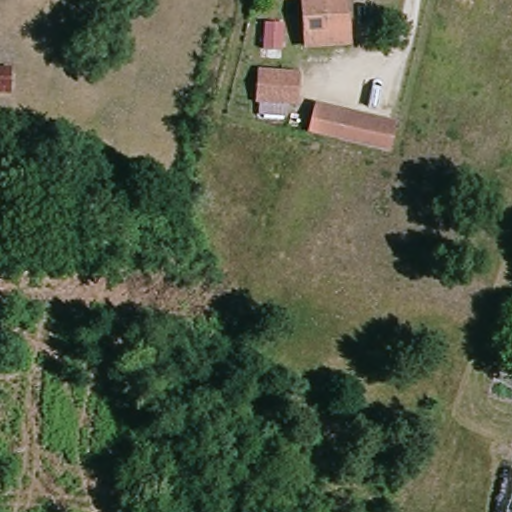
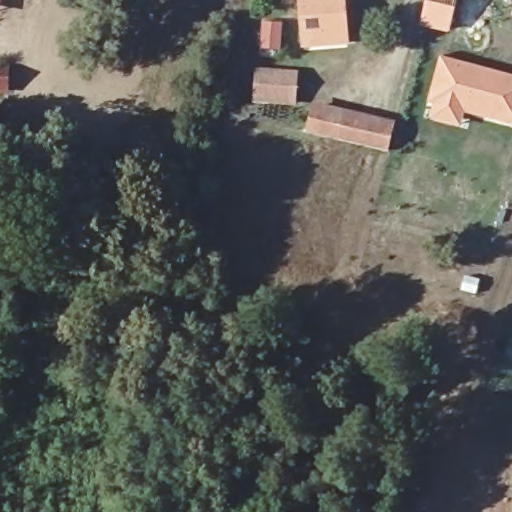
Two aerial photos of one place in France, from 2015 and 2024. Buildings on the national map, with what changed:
new [(0,4),(0,0),(1,0),(0,4)]
unchanged [(351,38),(311,42),(306,0),(347,0),(351,38)]
new [(430,119),(434,107),(428,105),(442,58),(512,76),(512,126),(466,114),(462,128),(430,119)]
unchanged [(0,90),(0,68),(1,68),(0,90)]
unchanged [(294,77),(292,105),(256,102),(258,73),(294,77)]
unchanged [(338,136),(306,128),(314,102),(345,110),(395,124),(388,149),(338,136)]

